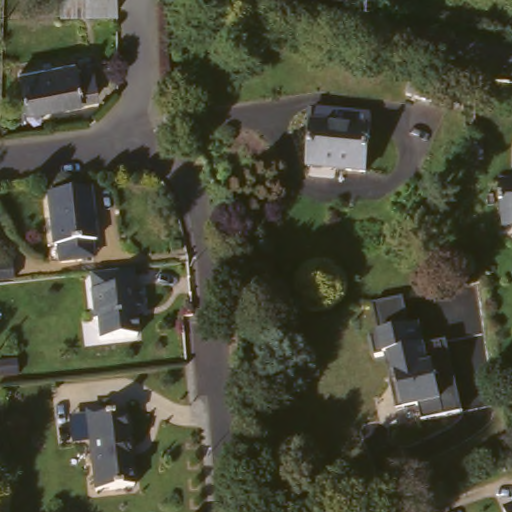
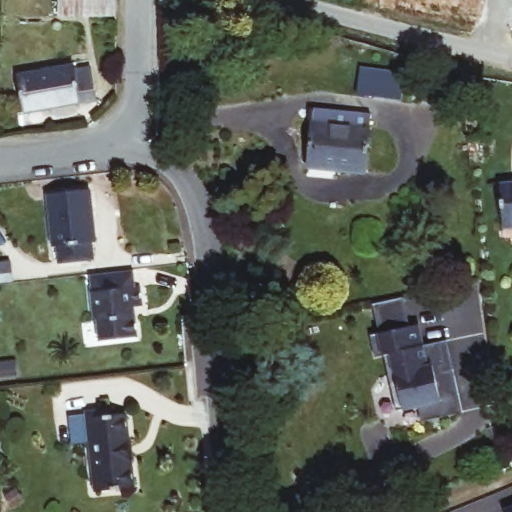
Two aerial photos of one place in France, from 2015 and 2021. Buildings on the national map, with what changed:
unchanged [(61,17),(60,0),(117,0),(117,18),(61,17)]
unchanged [(27,76),(72,72),(75,78),(92,77),(95,103),(30,107),(27,76)]
unchanged [(424,84),(450,90),(445,115),(420,110),(424,84)]
unchanged [(315,113),(371,113),(372,133),(374,168),(316,168),(315,113)]
unchanged [(52,245),(44,187),(84,182),(87,203),(95,210),(97,236),(88,242),(90,257),(55,260),(52,245)]
unchanged [(505,225),(506,182),(512,183),(512,226),(505,225)]
unchanged [(83,281),(92,280),(92,266),(131,264),(132,276),(142,276),(146,312),(136,313),(138,336),(99,338),(97,315),(89,316),(83,281)]
unchanged [(462,412),(422,421),(419,409),(400,412),(387,355),(377,354),(372,334),(377,333),(372,304),(402,298),(410,325),(415,324),(421,347),(445,340),(462,412)]
unchanged [(90,410),(117,407),(119,414),(130,414),(135,458),(97,462),(90,410)]
unchanged [(97,462),(135,458),(138,487),(100,491),(97,462)]
unchanged [(502,508),(512,506),(512,512),(503,512),(502,508)]

